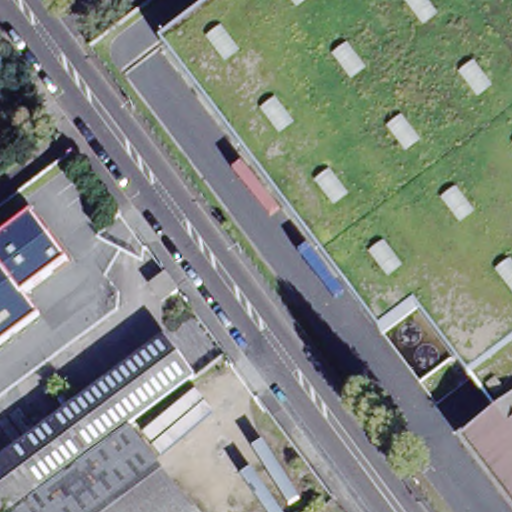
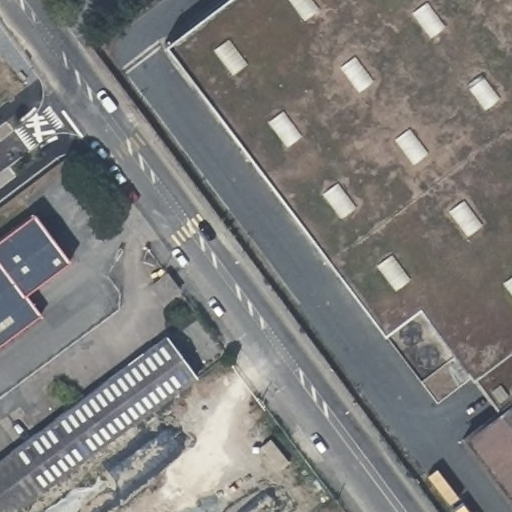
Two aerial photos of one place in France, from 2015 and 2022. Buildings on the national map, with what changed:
unchanged [(454,357),(417,308),(379,337),(157,44),(215,0),(512,0),(512,401),(496,412),(464,370),(458,375),(449,362),(454,357)]
unchanged [(47,315),(0,351),(0,243),(39,213),(75,262),(31,295),(47,315)]
unchanged [(179,291),(164,303),(151,286),(166,275),(179,291)]
unchanged [(413,322),(414,322),(414,323),(415,323),(416,323),(417,323),(417,324),(418,324),(419,324),(419,325),(420,326),(421,326),(421,327),(422,328),(422,329),(423,330),(423,331),(423,332),(424,333),(424,334),(424,335),(423,335),(423,336),(423,337),(423,338),(423,339),(422,339),(422,340),(422,341),(421,341),(421,342),(420,342),(419,342),(419,343),(418,344),(417,344),(417,345),(416,345),(415,345),(414,345),(414,346),(413,346),(412,346),(411,346),(410,346),(409,346),(409,345),(408,345),(407,345),(406,344),(405,344),(404,343),(404,342),(403,342),(403,341),(402,341),(402,340),(401,340),(401,339),(401,338),(400,337),(400,336),(399,335),(399,334),(399,333),(400,332),(400,331),(401,330),(401,329),(401,328),(402,328),(402,327),(403,327),(403,326),(404,325),(404,324),(405,324),(406,324),(406,323),(407,323),(408,323),(409,323),(409,322),(410,322),(411,322),(412,322),(413,322)]
unchanged [(194,376),(8,512),(0,512),(0,459),(164,336),(194,376)]
unchanged [(431,345),(432,345),(432,346),(433,346),(434,346),(434,347),(435,347),(436,347),(436,348),(438,349),(438,350),(439,351),(439,352),(439,353),(440,354),(440,355),(440,356),(441,356),(441,357),(440,357),(440,358),(440,359),(440,360),(439,361),(439,362),(439,363),(438,363),(438,364),(438,365),(437,365),(437,366),(436,366),(435,367),(434,367),(434,368),(433,368),(432,368),(431,368),(430,369),(429,369),(428,369),(427,369),(426,368),(425,368),(424,368),(423,367),(422,367),(422,366),(421,366),(420,365),(419,365),(419,364),(419,363),(418,363),(418,362),(418,361),(417,361),(417,360),(417,359),(417,358),(417,357),(417,356),(417,355),(417,354),(417,353),(418,352),(418,351),(418,350),(419,350),(419,349),(420,348),(421,348),(421,347),(422,347),(423,346),(424,346),(425,345),(426,345),(427,345),(428,345),(429,345),(430,345),(431,345)]
unchanged [(458,441),(496,412),(512,401),(512,512),(458,441)]
demolished [(193,512),(14,512),(129,426),(193,512)]

